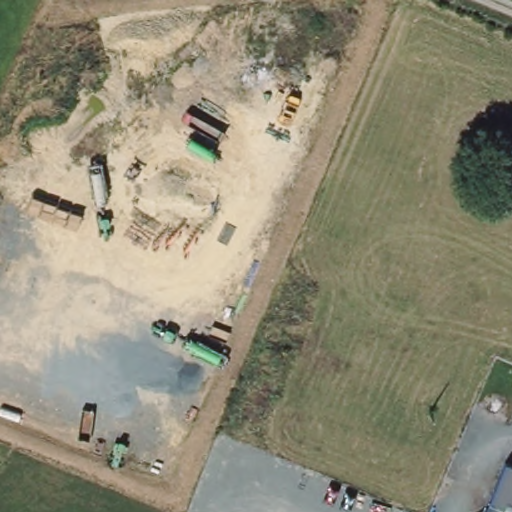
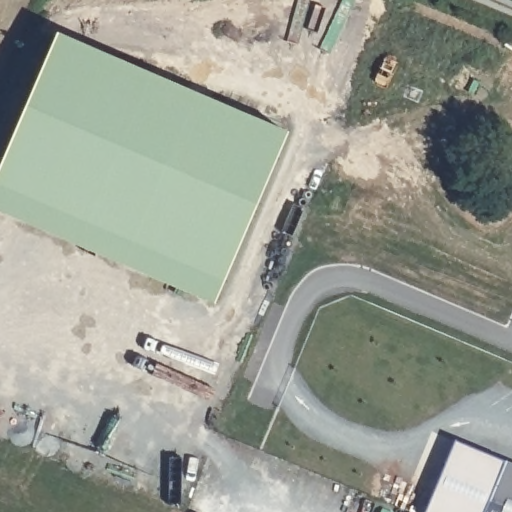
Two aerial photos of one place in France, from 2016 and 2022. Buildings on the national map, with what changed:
new [(57,34),(287,133),(214,304),(0,212),(0,168),(57,34)]
unchanged [(512,512),(485,512),(506,461),(512,463),(512,512)]

